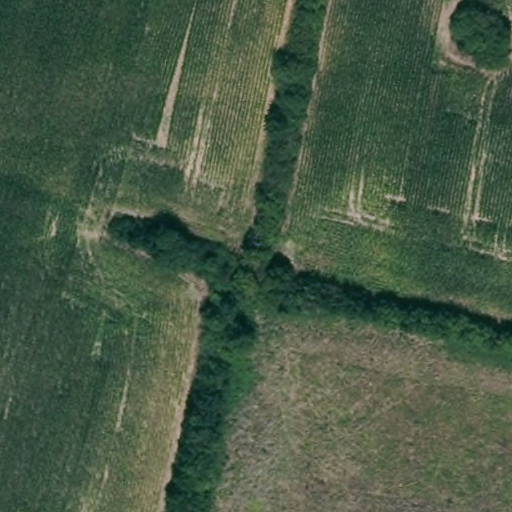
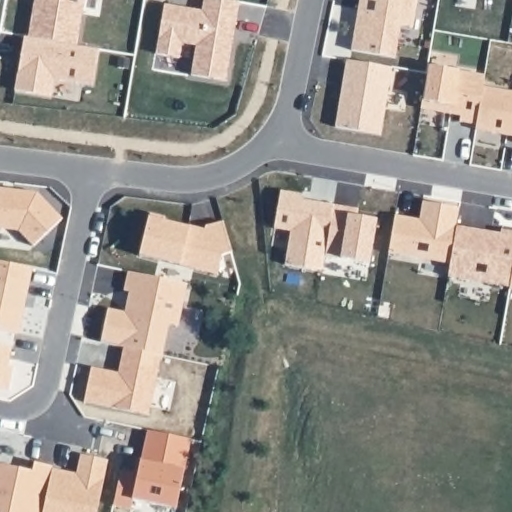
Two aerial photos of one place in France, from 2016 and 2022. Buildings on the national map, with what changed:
new [(84,0),(76,45),(28,37),(35,0),(84,0)]
new [(202,11),(204,0),(228,0),(242,2),(239,19),(237,19),(225,81),(196,76),(201,46),(181,43),(178,58),(155,54),(164,5),(202,11)]
new [(362,5),(363,0),(417,0),(412,28),(400,26),(394,58),(351,50),(359,4),(362,5)]
new [(18,70),(22,71),(25,56),(21,55),(24,37),(28,37),(76,45),(98,49),(92,86),(54,79),(51,97),(15,91),(18,70)]
new [(347,60),(391,67),(379,135),(335,127),(347,60)]
new [(428,66),(484,76),(482,87),(476,124),(459,121),(460,115),(420,109),(428,66)]
new [(482,87),(512,91),(512,136),(475,130),(476,124),(482,87)]
new [(37,193),(62,219),(33,246),(18,231),(0,228),(0,189),(37,193)]
new [(280,191),(300,194),(303,201),(333,206),(324,256),(322,271),(285,265),(291,231),(274,227),(280,191)]
new [(395,215),(412,218),(411,227),(418,228),(422,201),(459,207),(456,226),(450,262),(388,252),(395,215)]
new [(333,206),(350,209),(349,216),(376,221),(369,262),(324,256),(333,206)]
new [(150,216),(164,219),(167,223),(187,228),(189,227),(206,230),(206,227),(223,222),(233,252),(223,256),(219,275),(141,258),(150,216)]
new [(456,226),(473,229),(472,232),(484,235),(484,231),(501,234),(501,230),(512,231),(512,270),(509,287),(448,276),(450,262),(456,226)]
new [(33,268),(19,334),(0,330),(0,261),(33,268)]
new [(512,270),(512,288),(509,288),(509,287),(512,270)]
new [(107,309),(127,313),(132,292),(123,290),(127,272),(186,284),(178,326),(169,324),(162,356),(100,342),(107,309)]
new [(11,348),(7,366),(12,367),(7,391),(0,389),(0,346),(11,348)]
new [(121,470),(137,473),(147,430),(190,440),(175,508),(133,500),(130,509),(113,506),(121,470)]
new [(52,468),(77,473),(80,454),(107,460),(96,512),(43,512),(52,468)]
new [(32,471),(34,462),(52,466),(52,468),(43,512),(1,512),(0,511),(0,464),(32,471)]

